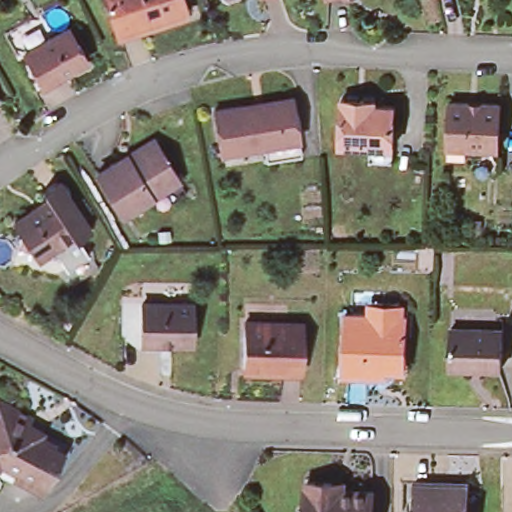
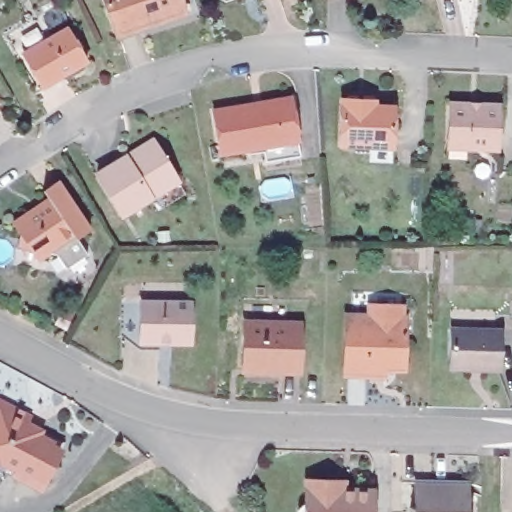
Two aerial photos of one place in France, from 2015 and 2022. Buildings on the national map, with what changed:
unchanged [(112,34),(102,0),(178,0),(184,16),(137,31),(139,37),(116,44),(112,34)]
unchanged [(22,55),(27,53),(65,31),(81,59),(85,64),(71,73),(46,87),(42,89),(22,55)]
unchanged [(265,164),(263,149),(220,155),(212,113),(246,107),(292,99),(292,104),(299,143),(301,158),(265,164)]
unchanged [(371,163),(371,148),(341,148),(341,100),(362,100),(374,100),(374,108),(393,109),(392,149),(392,164),(371,163)]
unchanged [(485,105),(500,105),(498,151),(447,149),(450,103),(469,104),(485,105)]
unchanged [(151,143),(154,148),(175,183),(119,216),(95,175),(124,159),(151,143)]
unchanged [(46,193),(60,183),(92,230),(77,239),(76,238),(60,249),(59,257),(24,253),(25,237),(17,225),(52,202),(46,193)]
unchanged [(198,344),(147,344),(148,334),(129,334),(129,304),(149,304),(199,305),(198,344)]
unchanged [(405,319),(402,372),(384,372),(384,379),(344,377),(347,318),(405,319)]
unchanged [(299,325),(299,374),(277,373),(277,369),(242,369),(242,324),(299,325)]
unchanged [(449,372),(451,331),(502,334),(501,374),(481,373),(470,373),(449,372)]
unchanged [(26,424),(52,438),(48,443),(60,449),(40,485),(15,471),(4,483),(0,479),(0,397),(31,413),(26,424)]
unchanged [(300,508),(306,503),(309,503),(310,479),(336,480),(346,481),(346,489),(374,489),(373,512),(300,512),(300,508)]
unchanged [(471,481),(470,510),(474,511),(474,512),(417,512),(418,479),(471,481)]

